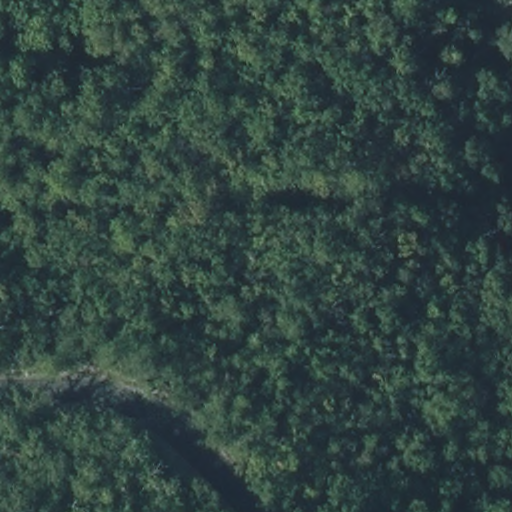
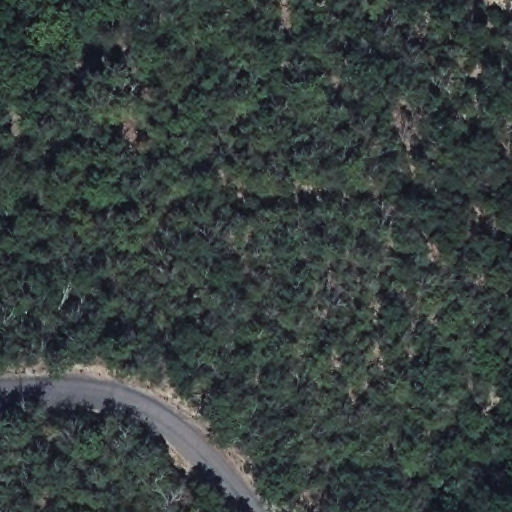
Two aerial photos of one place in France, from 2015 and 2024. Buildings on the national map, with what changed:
[]

